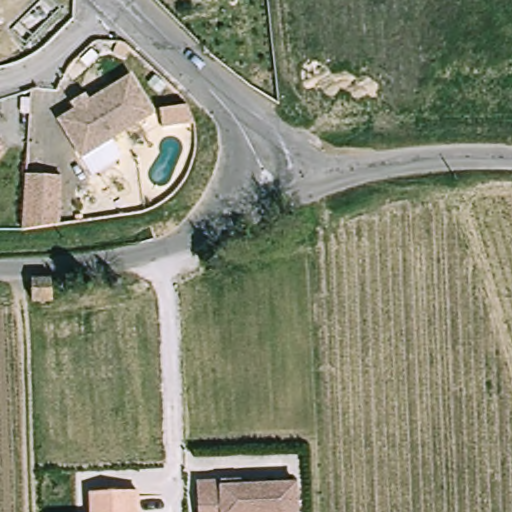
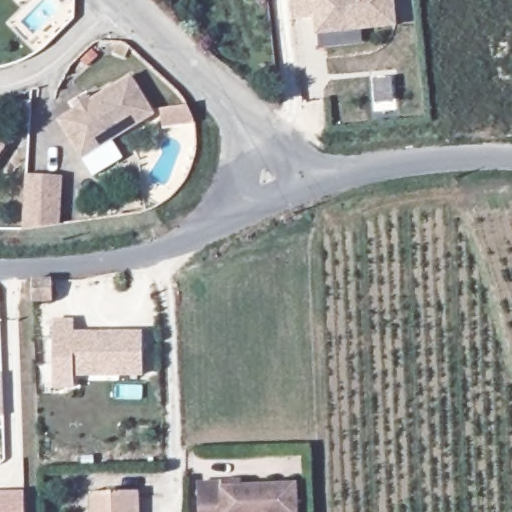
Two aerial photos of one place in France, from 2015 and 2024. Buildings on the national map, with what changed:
new [(400,24),(322,35),(320,20),(298,23),(295,0),(397,0),(400,24)]
unchanged [(90,177),(80,160),(56,122),(74,111),(70,104),(83,96),(88,103),(130,78),(153,116),(110,142),(120,159),(90,177)]
unchanged [(0,158),(0,142),(8,147),(0,158)]
unchanged [(60,174),(56,224),(43,225),(20,226),(23,172),(60,174)]
unchanged [(32,300),(32,279),(52,279),(52,300),(32,300)]
new [(53,387),(53,370),(53,320),(73,320),(73,333),(83,333),(142,332),(143,373),(105,374),(105,370),(73,370),(73,387),(53,387)]
new [(4,418),(0,418),(0,376),(3,376),(4,418)]
unchanged [(236,481),(241,481),(241,486),(296,484),(298,512),(199,512),(198,483),(236,481)]
unchanged [(137,491),(138,512),(91,512),(90,493),(137,491)]
new [(26,512),(0,512),(0,493),(25,492),(26,512)]

